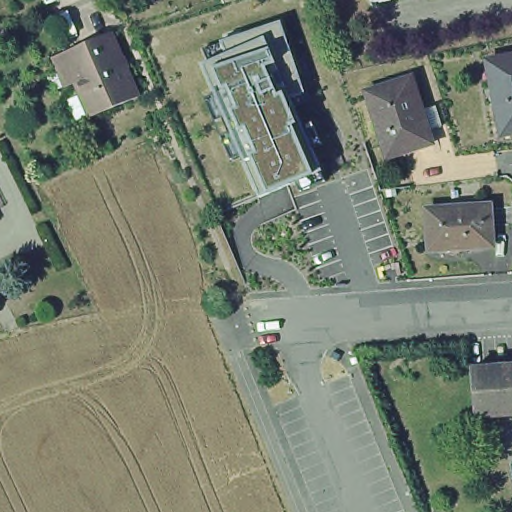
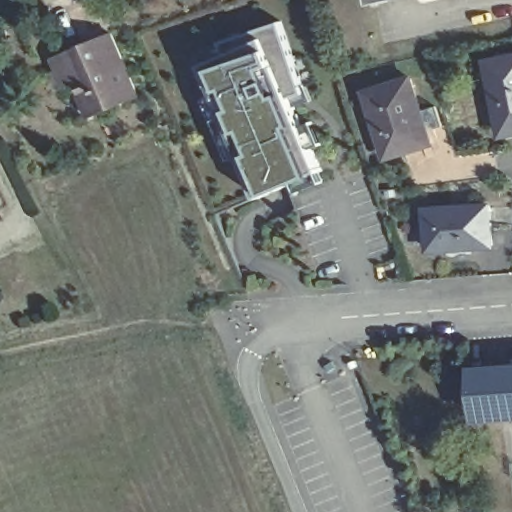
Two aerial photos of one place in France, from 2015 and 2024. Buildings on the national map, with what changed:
unchanged [(390,0),(380,2),(380,0),(390,0)]
unchanged [(305,94),(290,98),(303,125),(313,122),(322,146),(314,148),(327,180),(300,191),(296,184),(260,199),(242,157),(233,161),(222,138),(232,134),(225,117),(216,121),(207,99),(215,95),(201,62),(207,59),(203,50),(221,42),(280,21),(305,94)]
unchanged [(116,33),(143,95),(93,117),(71,66),(64,69),(59,57),(116,33)]
unchanged [(487,57),(512,52),(512,128),(503,130),(501,123),(487,57)]
unchanged [(385,152),(363,88),(406,74),(419,112),(428,138),(420,141),(385,152)]
unchanged [(430,251),(427,210),(490,206),(492,229),(492,247),(486,247),(430,251)]
unchanged [(473,364),(512,361),(512,424),(479,427),(473,364)]

